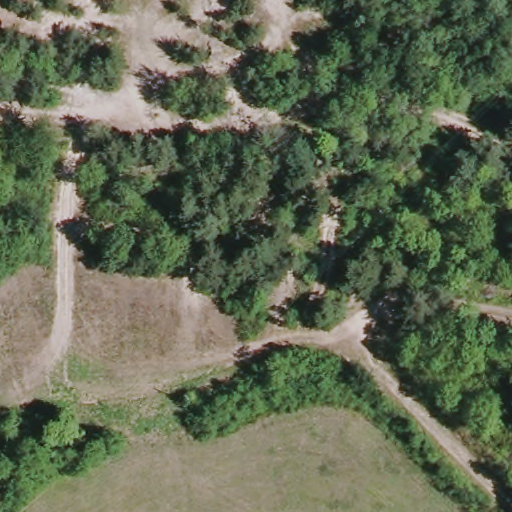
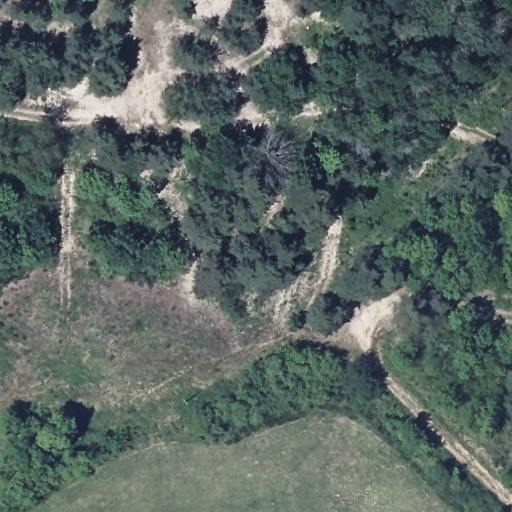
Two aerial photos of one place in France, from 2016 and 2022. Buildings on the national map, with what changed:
[]

